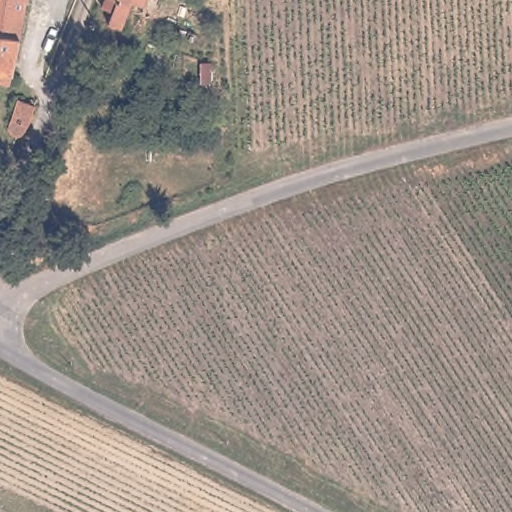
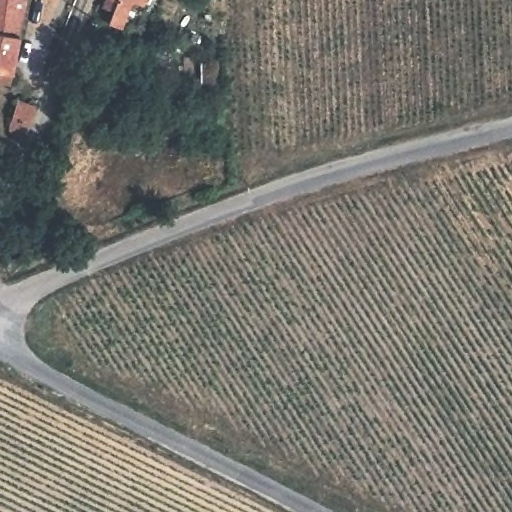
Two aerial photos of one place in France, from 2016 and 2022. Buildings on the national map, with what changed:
unchanged [(23,36),(0,32),(0,0),(30,0),(23,36)]
unchanged [(112,11),(102,7),(104,0),(146,0),(144,7),(132,3),(122,29),(107,24),(112,11)]
unchanged [(14,82),(0,79),(0,32),(23,36),(14,82)]
unchanged [(31,126),(24,132),(16,128),(12,120),(22,94),(41,100),(31,126)]

